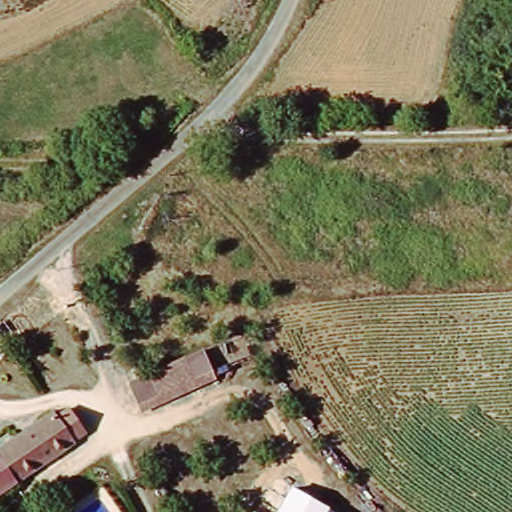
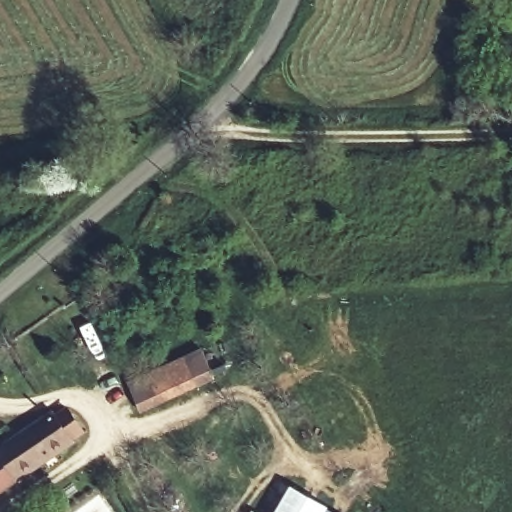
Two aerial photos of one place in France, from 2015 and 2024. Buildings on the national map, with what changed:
unchanged [(195,355),(196,360),(208,383),(136,419),(123,392),(133,386),(195,355)]
unchanged [(50,417),(59,410),(78,434),(70,441),(73,445),(0,494),(0,446),(46,412),(50,417)]
unchanged [(325,512),(278,512),(291,490),(326,510),(325,512)]
unchanged [(330,512),(325,512),(326,510),(330,512)]

